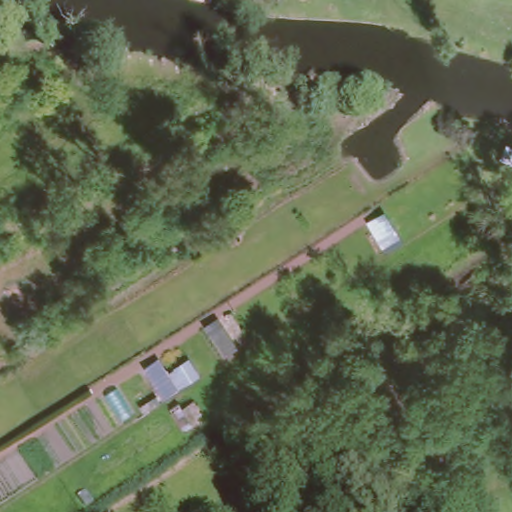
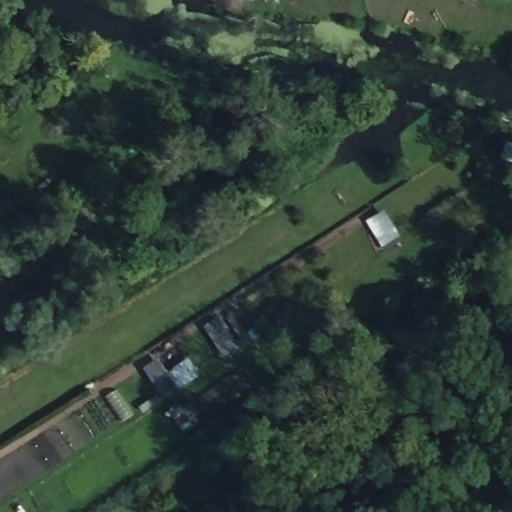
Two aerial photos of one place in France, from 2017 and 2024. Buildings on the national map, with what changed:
unchanged [(154,358),(175,387),(165,393),(145,364),(154,358)]
unchanged [(194,424),(185,431),(168,406),(177,400),(194,424)]

